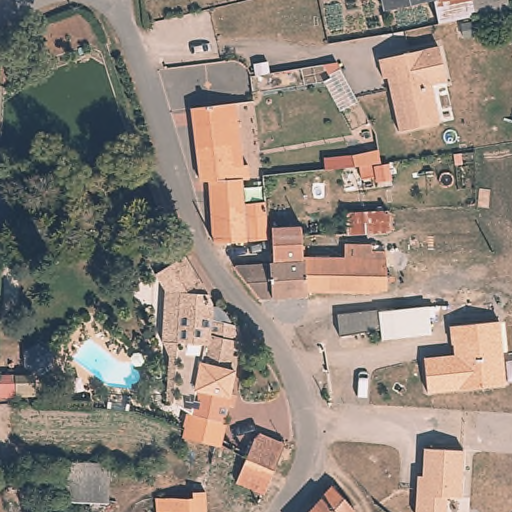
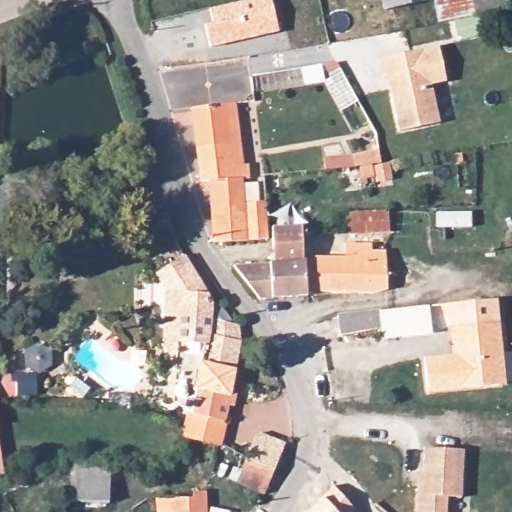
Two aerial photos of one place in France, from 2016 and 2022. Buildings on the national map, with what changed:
new [(212,22),(208,9),(247,0),(272,0),(280,32),(209,48),(204,25),(212,22)]
unchanged [(473,12),(440,21),(435,0),(470,0),(473,12)]
unchanged [(511,1),(489,7),(473,12),(470,0),(511,0),(511,1)]
unchanged [(383,66),(443,54),(450,89),(435,92),(443,130),(402,139),(393,92),(392,84),(387,85),(383,66)]
unchanged [(191,109),(233,103),(243,163),(249,162),(252,179),(246,179),(208,182),(203,182),(191,109)]
unchanged [(248,200),(265,199),(269,235),(213,241),(208,182),(246,179),(248,200)]
new [(0,191),(10,192),(9,201),(20,202),(17,222),(0,221),(0,191)]
unchanged [(392,230),(353,232),(352,225),(352,212),(391,210),(392,230)]
unchanged [(308,287),(308,292),(264,296),(235,263),(273,257),(273,222),(307,221),(307,228),(308,259),(308,287)]
unchanged [(308,259),(350,256),(349,242),(375,241),(375,247),(388,247),(390,280),(377,287),(308,287),(308,259)]
unchanged [(193,440),(196,426),(199,403),(178,398),(180,364),(175,362),(165,341),(164,291),(153,276),(166,266),(175,260),(207,293),(215,302),(214,312),(218,312),(227,315),(227,316),(233,324),(233,327),(237,327),(245,337),(230,431),(226,452),(192,447),(193,440)]
unchanged [(429,304),(433,335),(381,341),(380,330),(340,334),(338,314),(429,304)]
unchanged [(500,329),(501,347),(501,379),(424,380),(424,373),(423,346),(453,345),(452,333),(452,331),(452,316),(453,316),(498,315),(500,315),(500,317),(500,329)]
unchanged [(270,440),(294,447),(280,472),(268,494),(246,483),(257,463),(270,440)]
unchanged [(461,500),(448,499),(448,512),(415,512),(417,477),(422,477),(424,447),(463,450),(461,500)]
unchanged [(60,463),(115,464),(111,509),(57,505),(60,463)]
unchanged [(340,494),(357,512),(322,512),(329,506),(340,494)]
unchanged [(212,502),(213,512),(164,512),(164,511),(212,502)]

